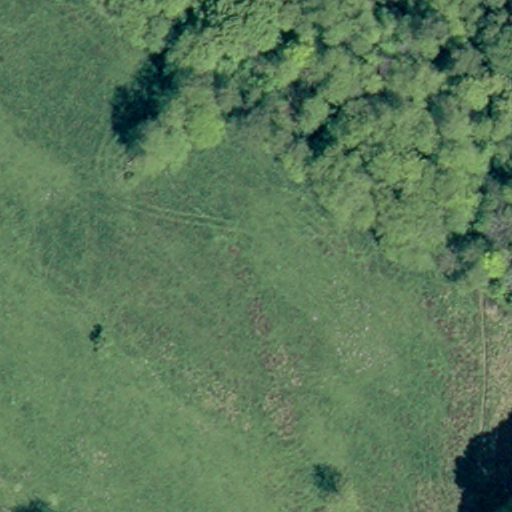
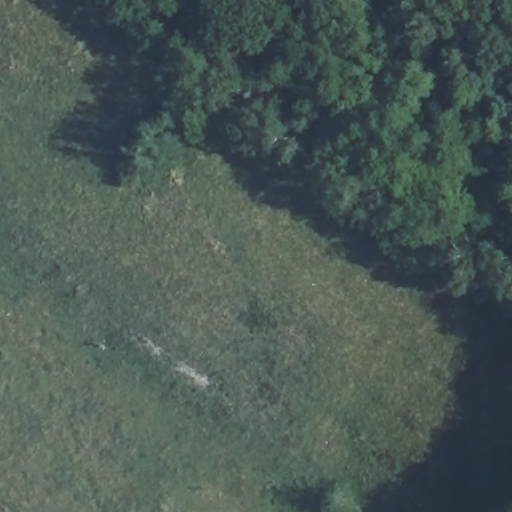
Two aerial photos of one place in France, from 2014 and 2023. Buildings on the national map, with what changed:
[]

